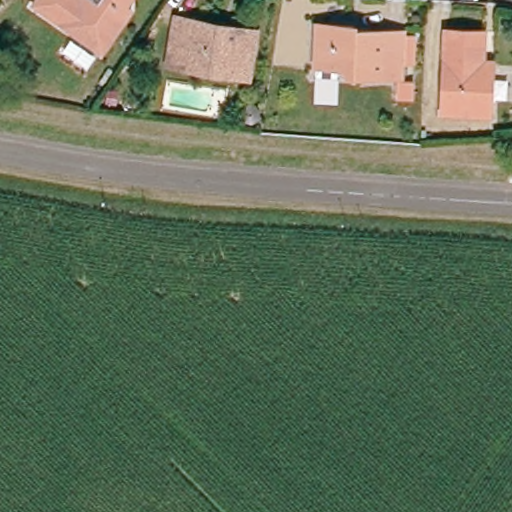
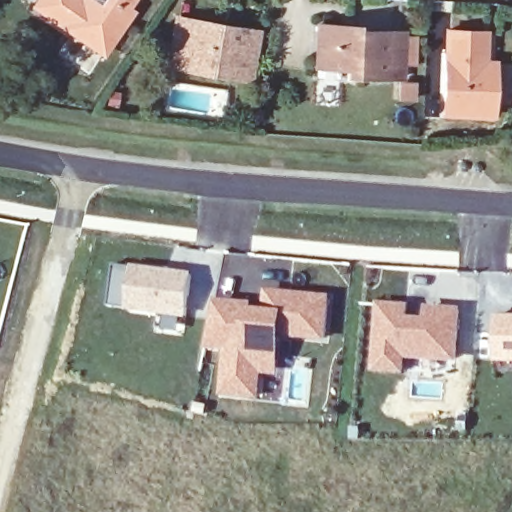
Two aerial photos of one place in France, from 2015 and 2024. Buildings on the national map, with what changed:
unchanged [(32,2),(33,0),(125,0),(123,4),(129,7),(105,41),(100,49),(56,19),(32,2)]
unchanged [(173,25),(174,20),(189,22),(217,27),(225,29),(255,34),(246,80),(235,78),(181,69),(165,66),(173,25)]
unchanged [(351,77),(352,69),(318,67),(320,26),(357,27),(357,31),(405,33),(405,36),(420,36),(418,67),(404,66),(403,79),(351,77)]
unchanged [(445,115),(445,102),(447,32),(486,32),(485,65),(495,65),(495,75),(493,103),(493,116),(445,115)]
unchanged [(400,100),(400,82),(416,83),(415,100),(400,100)]
new [(193,272),(189,317),(126,311),(131,265),(193,272)]
new [(254,302),(254,307),(264,308),(265,290),(331,295),(327,341),(283,337),(280,375),(264,374),(261,401),(222,397),(225,351),(206,350),(215,299),(254,302)]
new [(411,303),(410,317),(425,317),(426,305),(463,307),(459,362),(406,358),(405,373),(372,372),(376,301),(411,303)]
new [(512,315),(512,362),(495,362),(495,315),(512,315)]

